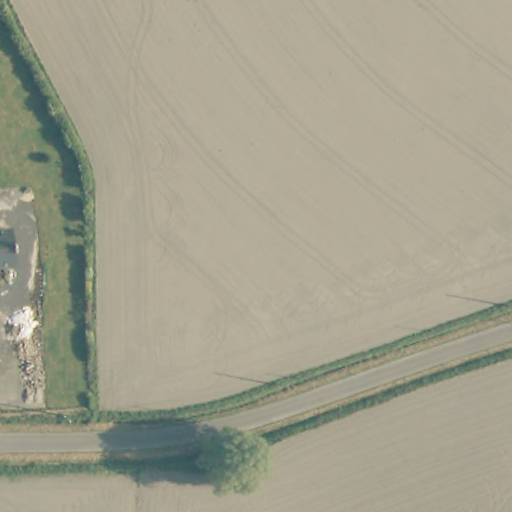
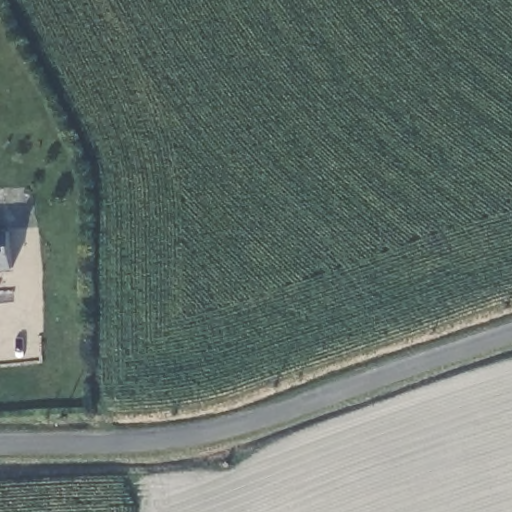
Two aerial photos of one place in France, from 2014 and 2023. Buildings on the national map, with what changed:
unchanged [(13,267),(0,268),(0,230),(9,229),(13,267)]

